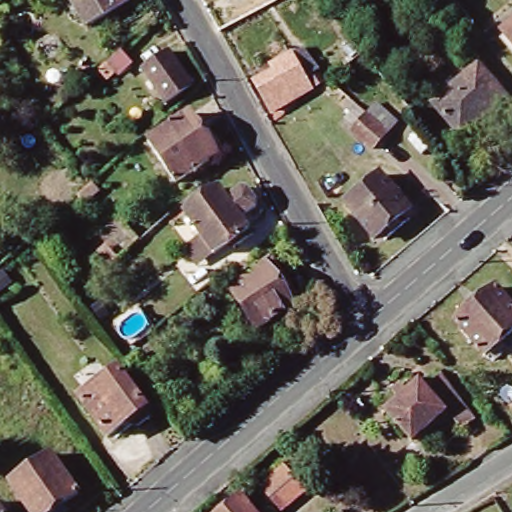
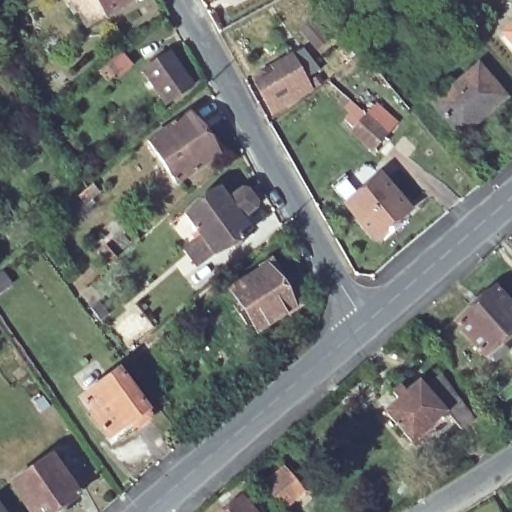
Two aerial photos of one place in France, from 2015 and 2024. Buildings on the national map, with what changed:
unchanged [(70,0),(132,0),(86,27),(70,0)]
unchanged [(502,33),(512,25),(512,44),(502,33)]
unchanged [(314,70),(298,80),(305,90),(268,112),(251,82),(261,77),(258,70),(270,64),(300,46),(314,70)]
unchanged [(192,86),(166,104),(142,71),(169,52),(192,86)]
unchanged [(505,97),(460,136),(432,105),(478,65),(505,97)]
unchanged [(316,84),(311,87),(307,81),(312,77),(316,84)]
unchanged [(396,124),(370,151),(350,131),(375,105),(396,124)]
unchanged [(217,155),(175,183),(147,142),(190,114),(217,155)]
unchanged [(392,234),(387,227),(373,239),(345,206),(382,176),(409,209),(395,220),(401,226),(392,234)]
unchanged [(185,247),(201,237),(185,212),(221,187),(229,199),(241,189),(247,190),(256,202),(255,209),(242,219),(249,230),(212,254),(196,265),(185,247)]
unchanged [(295,301),(249,332),(221,290),(266,259),(295,301)]
unchanged [(485,356),(455,322),(495,287),(512,307),(512,331),(485,356)]
unchanged [(146,409),(150,414),(149,419),(137,428),(132,427),(128,422),(108,437),(80,399),(118,371),(146,409)]
unchanged [(370,421),(383,409),(377,403),(385,396),(390,402),(403,390),(410,397),(425,384),(458,430),(445,438),(431,422),(396,452),(370,421)]
unchanged [(79,495),(54,512),(29,512),(10,485),(51,456),(79,495)]
unchanged [(300,485),(300,486),(276,506),(256,482),(280,461),(300,485)]
unchanged [(253,512),(224,512),(241,498),(253,512)]
unchanged [(0,505),(5,512),(0,512),(0,505)]

